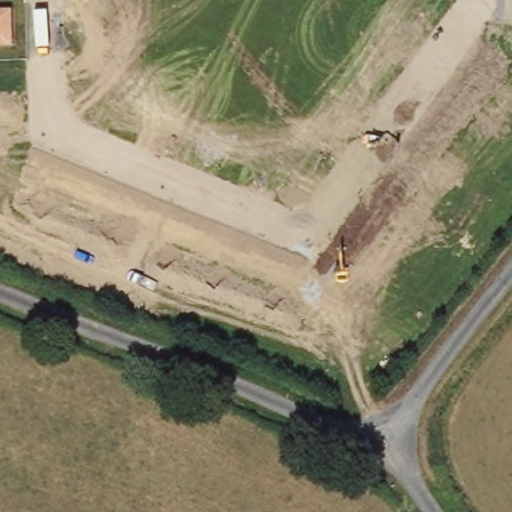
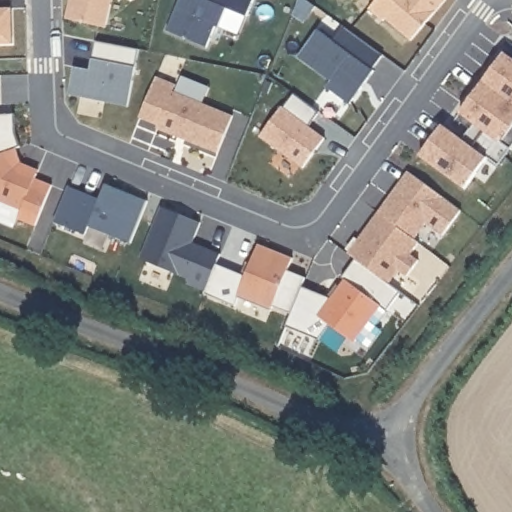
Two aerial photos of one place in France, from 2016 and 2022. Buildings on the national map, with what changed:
new [(71,18),(74,0),(116,0),(110,27),(71,18)]
new [(260,0),(253,17),(233,8),(226,27),(222,26),(214,47),(174,31),(186,0),(260,0)]
new [(391,15),(388,17),(374,5),(379,0),(448,0),(417,37),(391,15)]
unchanged [(15,47),(0,47),(0,9),(14,9),(15,47)]
new [(323,28),(339,40),(350,26),(388,54),(378,68),(380,70),(356,103),(332,86),(337,79),(303,55),(323,28)]
new [(463,135),(476,118),(461,108),(468,97),(482,78),(488,69),(497,58),(505,47),(512,52),(512,144),(500,161),(488,153),(466,184),(421,151),(443,120),(463,135)]
new [(77,70),(93,73),(95,62),(138,70),(131,109),(72,97),(77,70)]
new [(159,78),(179,86),(177,93),(237,117),(221,155),(160,131),(161,128),(142,120),(159,78)]
new [(287,105),(330,137),(308,167),(265,135),(287,105)]
new [(21,133),(26,147),(20,149),(0,156),(0,115),(20,114),(21,133)]
new [(42,170),(41,174),(40,179),(57,185),(42,226),(24,219),(27,211),(0,200),(0,156),(20,149),(25,164),(42,170)]
new [(409,167),(462,205),(443,230),(427,218),(415,234),(379,208),(409,167)]
new [(93,194),(105,198),(111,183),(153,200),(136,243),(94,226),(91,235),(58,222),(72,185),(93,194)]
new [(206,221),(197,242),(207,246),(226,253),(222,263),(211,290),(192,283),(195,278),(146,258),(167,206),(206,221)]
new [(379,208),(415,234),(420,237),(411,249),(420,256),(408,271),(400,265),(390,278),(357,254),(350,249),(379,208)]
new [(244,297),(241,305),(210,293),(211,290),(222,263),(251,275),(263,243),(298,257),(293,269),(311,277),(308,284),(297,313),(278,305),(277,310),(244,297)]
new [(297,313),(308,284),(333,295),(347,276),(343,274),(357,254),(390,278),(407,291),(393,309),(387,305),(362,340),(338,322),(327,337),(292,323),(297,313)]

